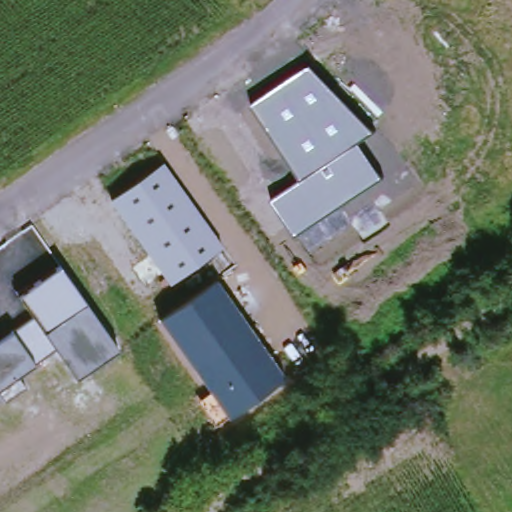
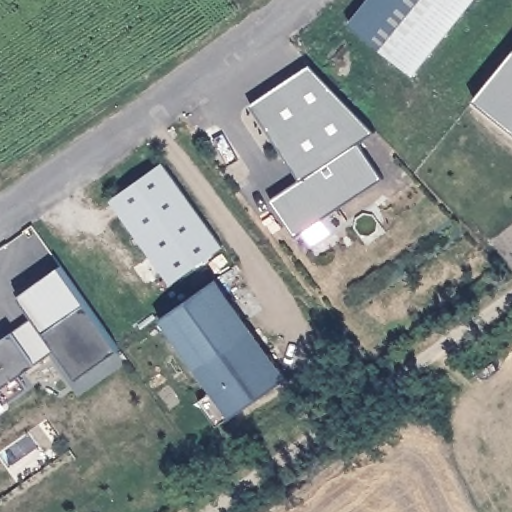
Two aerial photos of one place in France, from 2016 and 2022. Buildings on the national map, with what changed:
new [(367,0),(472,0),(415,72),(351,20),(367,0)]
new [(512,53),(512,130),(475,99),(512,53)]
unchanged [(375,132),(359,143),(382,176),(296,234),(271,198),(300,177),(251,103),(309,63),(375,132)]
unchanged [(223,246),(171,283),(111,200),(163,161),(223,246)]
unchanged [(20,294),(60,265),(120,349),(76,378),(54,347),(34,362),(37,365),(19,377),(26,387),(6,400),(1,394),(0,395),(0,340),(34,314),(20,294)]
unchanged [(287,379),(230,417),(226,414),(216,421),(199,399),(210,390),(159,317),(217,278),(287,379)]

